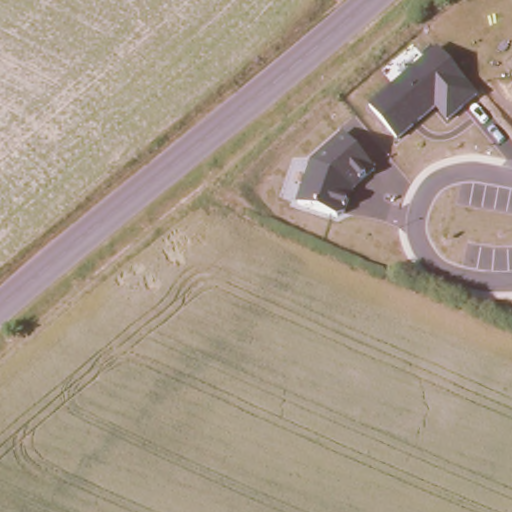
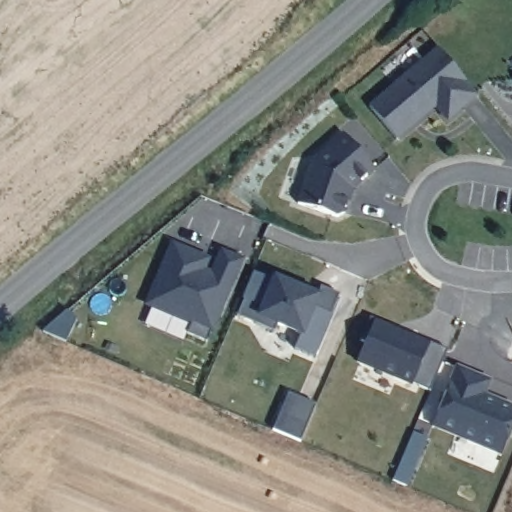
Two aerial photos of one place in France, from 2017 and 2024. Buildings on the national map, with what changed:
unchanged [(370,106),(439,49),(480,95),(448,121),(435,105),(397,140),(370,106)]
unchanged [(375,169),(353,190),(347,210),(337,218),(296,201),(311,160),(342,132),(375,169)]
new [(212,262),(218,257),(218,254),(242,264),(205,344),(194,334),(187,336),(184,341),(144,325),(151,308),(144,306),(170,245),(190,254),(212,262)]
new [(322,288),(340,296),(314,357),(297,350),(300,341),(237,315),(255,273),(273,281),(275,277),(320,295),(322,288)]
new [(77,318),(65,342),(48,333),(60,310),(77,318)]
new [(447,350),(429,393),(357,363),(375,320),(447,350)]
new [(452,384),(448,382),(457,366),(488,382),(490,387),(485,394),(512,405),(512,426),(500,456),(439,430),(451,401),(446,399),(452,384)]
new [(288,395),(315,406),(300,441),(273,430),(288,395)]

